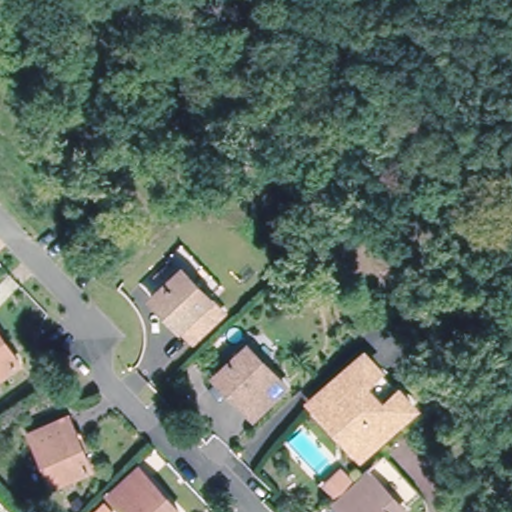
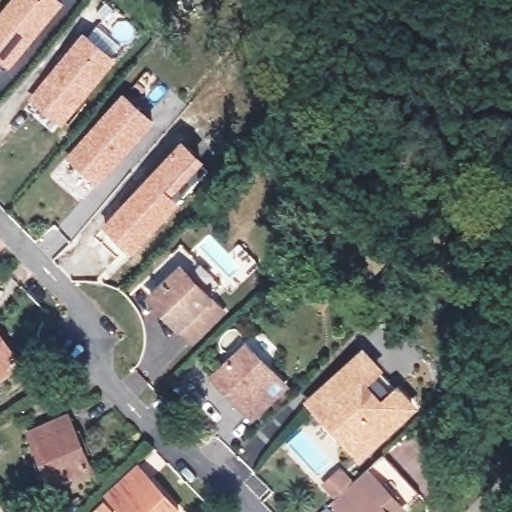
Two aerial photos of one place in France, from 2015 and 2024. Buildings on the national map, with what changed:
new [(9,67),(0,60),(0,13),(11,0),(61,0),(64,2),(9,67)]
new [(117,60),(63,125),(29,97),(83,32),(117,60)]
new [(155,121),(99,185),(65,157),(123,92),(155,121)]
new [(126,199),(182,138),(205,162),(187,182),(190,185),(178,197),(181,201),(131,255),(102,227),(126,199)]
unchanged [(344,246),(329,229),(344,215),(359,232),(344,246)]
unchanged [(222,311),(192,339),(151,297),(181,268),(222,311)]
unchanged [(0,375),(0,337),(17,363),(0,375)]
unchanged [(255,415),(216,375),(247,345),(285,385),(255,415)]
unchanged [(360,456),(345,440),(350,434),(331,414),(325,419),(310,402),(364,353),(413,406),(360,456)]
unchanged [(91,467),(52,484),(30,432),(68,415),(91,467)]
unchanged [(332,502),(322,491),(325,487),(333,480),(343,492),(378,459),(415,499),(402,512),(333,512),(327,506),(332,502)]
unchanged [(126,512),(109,493),(139,466),(180,512),(126,512)]
unchanged [(112,512),(95,512),(105,503),(112,512)]

